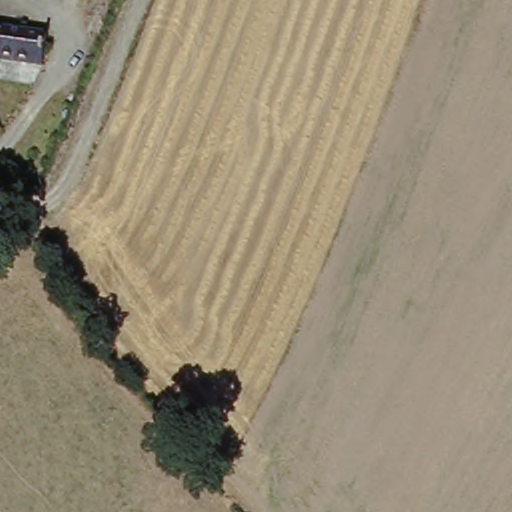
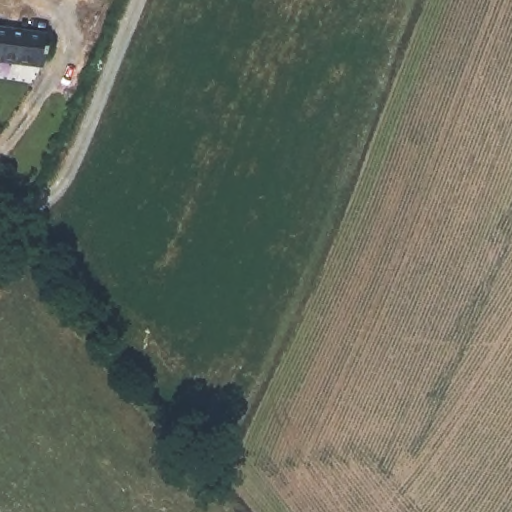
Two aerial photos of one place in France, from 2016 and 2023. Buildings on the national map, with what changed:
unchanged [(0,23),(48,30),(44,66),(0,59),(0,23)]

